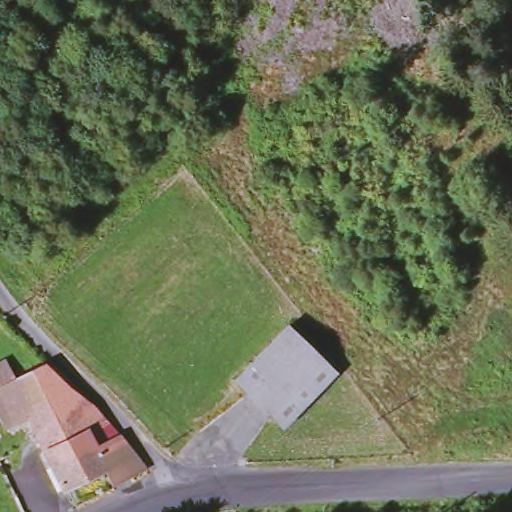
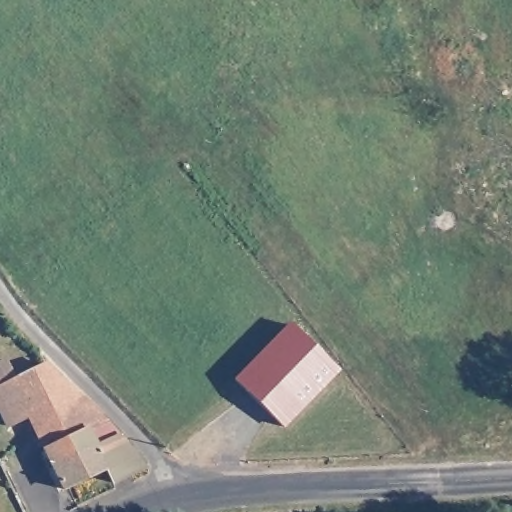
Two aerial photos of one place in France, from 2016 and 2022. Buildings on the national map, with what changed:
unchanged [(333,375),(278,430),(233,382),(288,326),(333,375)]
unchanged [(60,492),(28,430),(10,439),(0,420),(0,366),(1,365),(9,381),(39,364),(64,389),(76,415),(88,412),(133,457),(139,469),(108,485),(101,472),(60,492)]

